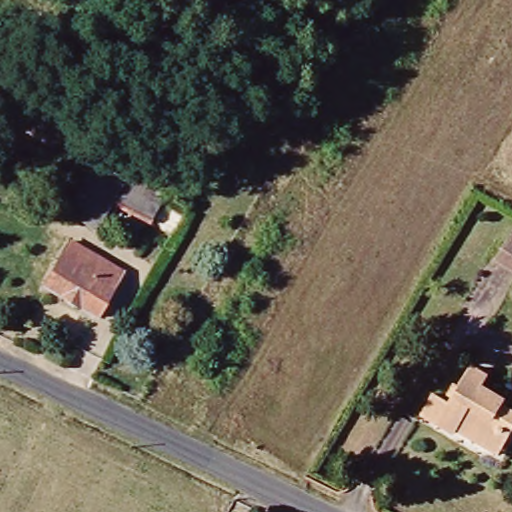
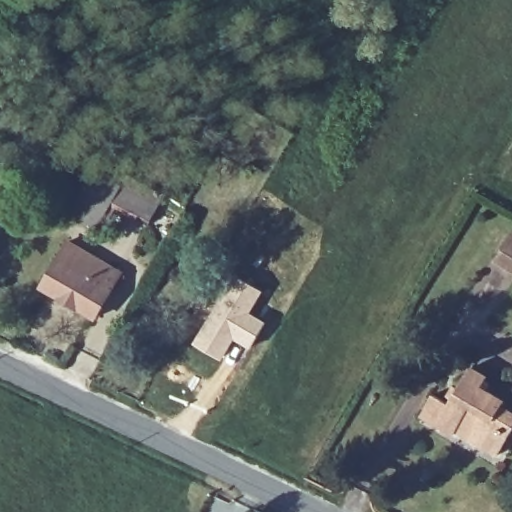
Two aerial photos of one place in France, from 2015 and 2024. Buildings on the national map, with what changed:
unchanged [(100,163),(152,194),(144,208),(111,189),(95,217),(75,206),(100,163)]
unchanged [(512,240),(512,253),(506,250),(512,240)]
unchanged [(45,291),(71,245),(124,276),(96,322),(45,291)]
new [(222,357),(197,343),(236,277),(261,292),(248,314),(265,324),(250,348),(230,335),(234,337),(228,347),(222,357)]
unchanged [(457,434),(455,438),(425,421),(436,400),(451,409),(473,371),(490,382),(485,392),(507,406),(505,411),(512,415),(512,434),(510,437),(499,457),(490,452),(457,434)]

